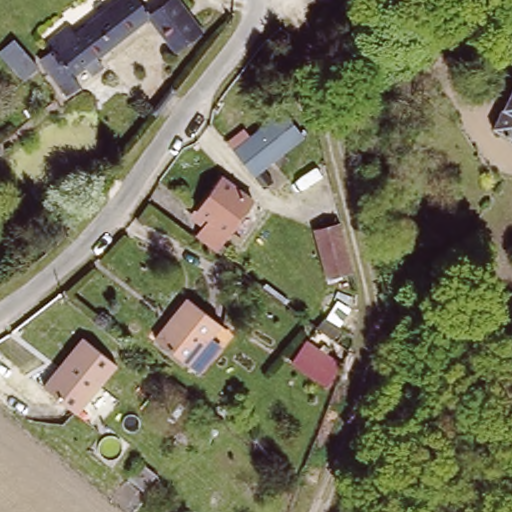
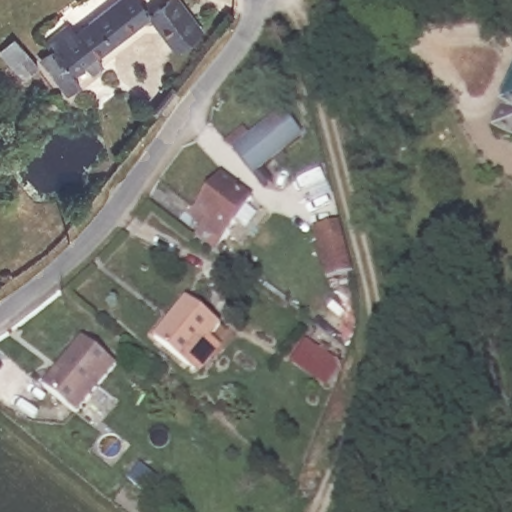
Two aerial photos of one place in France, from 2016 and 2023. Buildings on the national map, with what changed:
unchanged [(97,58),(103,66),(89,77),(82,69),(72,76),(77,84),(65,93),(48,70),(51,68),(42,55),(52,48),(45,39),(68,23),(75,33),(123,0),(138,0),(150,17),(152,19),(97,58)]
unchanged [(175,0),(202,36),(177,54),(152,19),(150,17),(174,0),(175,0)]
unchanged [(37,64),(28,73),(15,61),(24,52),(37,64)]
unchanged [(494,124),(512,86),(512,132),(494,124)]
unchanged [(277,165),(276,166),(267,156),(260,162),(242,141),(261,125),(280,109),(297,129),(278,146),(287,156),(277,165)]
unchanged [(230,243),(235,247),(230,256),(202,235),(215,218),(198,205),(225,171),(256,196),(232,230),(237,233),(230,243)]
unchanged [(312,231),(340,225),(350,274),(322,278),(312,231)]
unchanged [(197,369),(185,359),(154,335),(187,293),(220,318),(203,337),(215,347),(197,369)]
unchanged [(44,384),(83,336),(112,360),(72,408),(44,384)]
unchanged [(323,387),(290,362),(306,342),(338,368),(323,387)]

